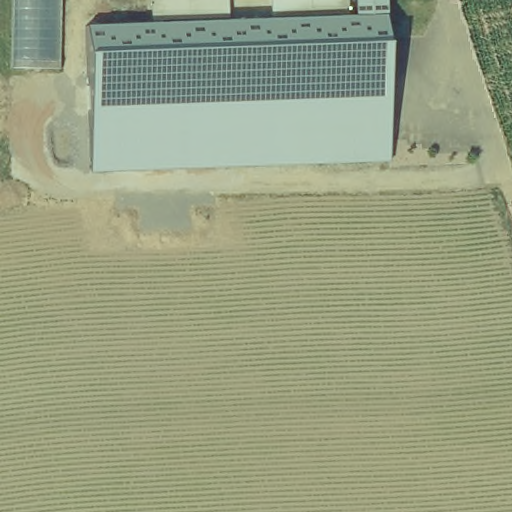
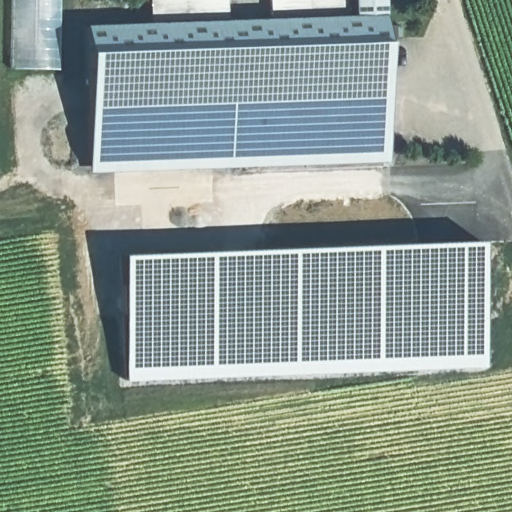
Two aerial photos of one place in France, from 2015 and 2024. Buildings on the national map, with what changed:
unchanged [(60,66),(13,66),(14,0),(61,0),(60,66)]
unchanged [(87,24),(151,22),(151,0),(225,0),(225,21),(271,20),(271,0),(347,0),(347,15),(353,14),(353,0),(383,0),(388,161),(90,174),(87,24)]
new [(482,245),(486,367),(124,380),(120,258),(482,245)]

